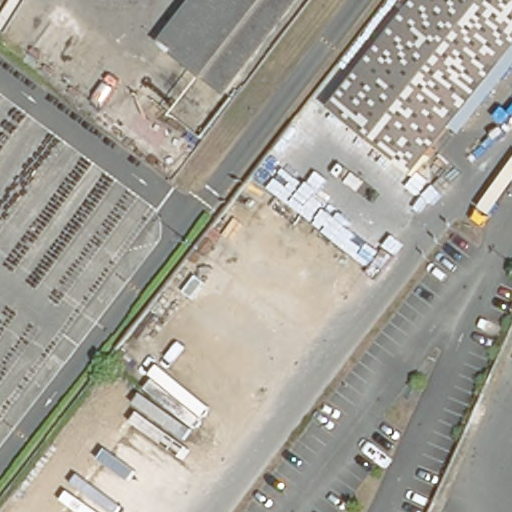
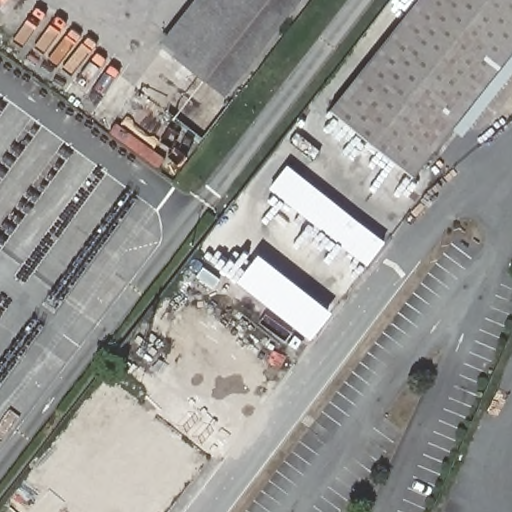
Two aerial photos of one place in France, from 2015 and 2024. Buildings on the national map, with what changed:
unchanged [(218,95),(159,49),(196,0),(292,0),(218,95)]
unchanged [(512,48),(412,174),(328,107),(413,0),(512,0),(512,48)]
new [(386,241),(367,266),(269,189),(288,165),(386,241)]
new [(256,255),(332,312),(312,338),(236,282),(256,255)]

